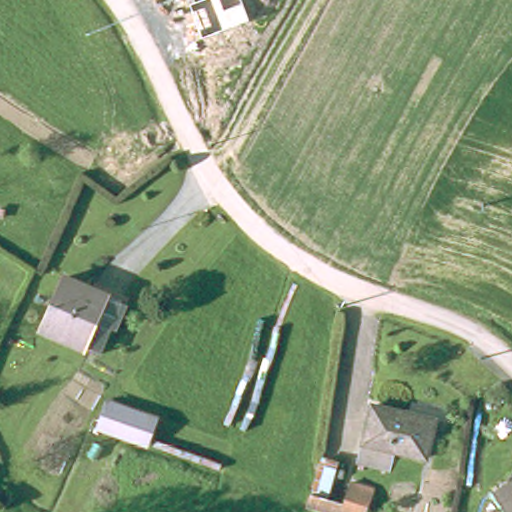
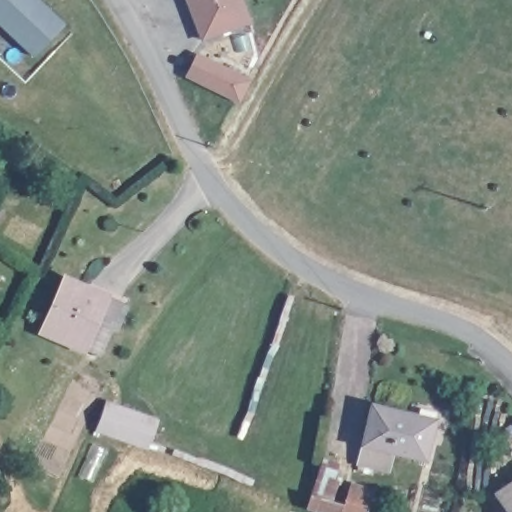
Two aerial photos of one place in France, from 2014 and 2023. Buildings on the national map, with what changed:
new [(64,24),(33,57),(0,26),(0,0),(39,0),(64,24)]
new [(250,21),(200,40),(185,0),(243,0),(250,21)]
new [(250,79),(238,104),(185,78),(197,52),(250,79)]
unchanged [(100,367),(40,343),(67,275),(125,298),(100,367)]
unchanged [(161,424),(153,447),(104,428),(113,405),(161,424)]
unchanged [(425,459),(397,452),(392,472),(362,464),(367,443),(377,406),(435,420),(425,459)]
new [(328,499),(344,503),(350,481),(373,488),(366,512),(317,512),(307,509),(320,457),(338,462),(328,499)]
unchanged [(512,490),(512,512),(511,512),(500,499),(512,490)]

